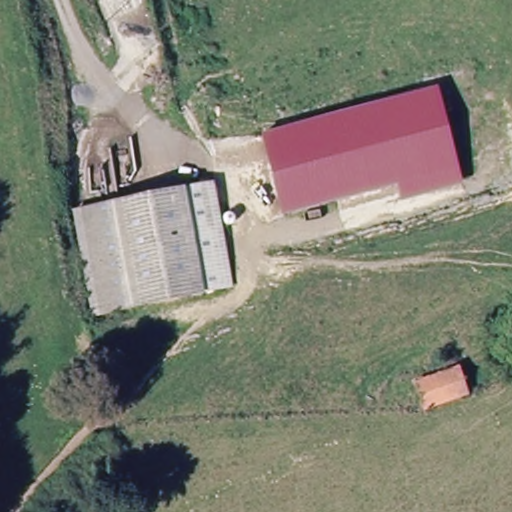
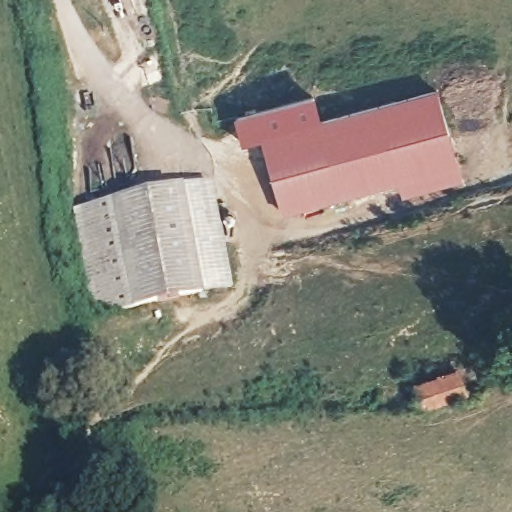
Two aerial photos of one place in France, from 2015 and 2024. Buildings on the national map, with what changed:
unchanged [(403,196),(399,182),(283,211),(263,134),(438,90),(458,167),(461,182),(403,196)]
new [(263,134),(242,140),(236,115),(315,94),(322,120),(263,134)]
unchanged [(127,205),(212,190),(229,292),(147,306),(127,205)]
unchanged [(92,317),(75,215),(127,205),(147,306),(92,317)]
unchanged [(418,383),(462,371),(469,397),(426,412),(418,383)]

